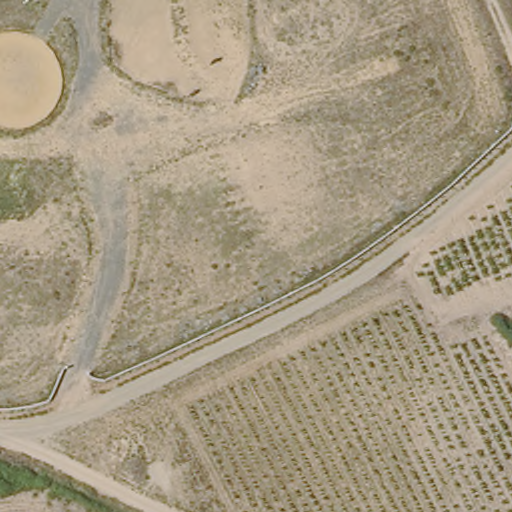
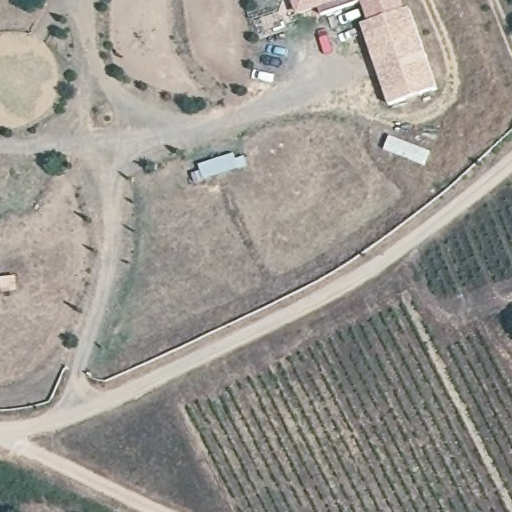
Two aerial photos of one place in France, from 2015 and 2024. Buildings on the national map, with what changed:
new [(362,2),(322,15),(319,9),(298,16),(292,0),(334,0),(402,0),(405,11),(368,22),(362,2)]
new [(390,105),(362,24),(410,9),(438,89),(390,105)]

